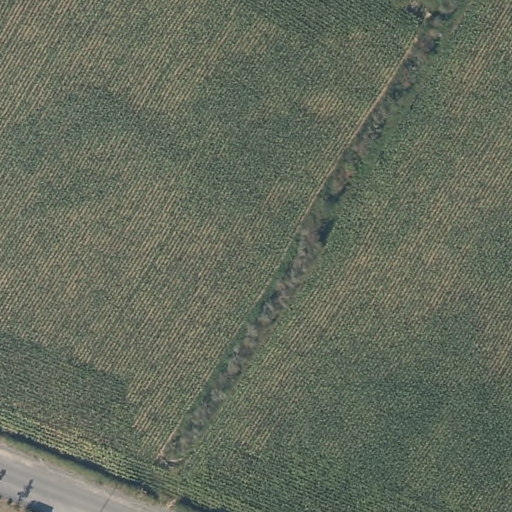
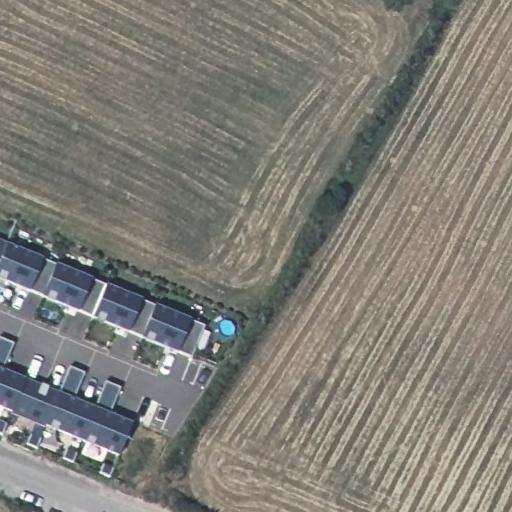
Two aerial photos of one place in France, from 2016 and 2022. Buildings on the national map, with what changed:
new [(7,244),(0,261),(0,241),(7,244)]
new [(7,244),(56,264),(43,296),(0,278),(0,261),(7,244)]
new [(56,264),(106,285),(93,317),(43,296),(56,264)]
new [(106,285),(156,305),(142,337),(93,317),(106,285)]
new [(156,305),(205,326),(192,358),(142,337),(156,305)]
new [(14,343),(3,370),(25,379),(12,411),(0,406),(0,338),(14,343)]
new [(59,393),(70,367),(85,373),(74,399),(94,408),(81,440),(45,425),(59,393)]
new [(25,379),(59,393),(45,425),(12,411),(25,379)]
new [(94,408),(106,381),(121,388),(109,414),(132,424),(119,456),(81,440),(94,408)]

